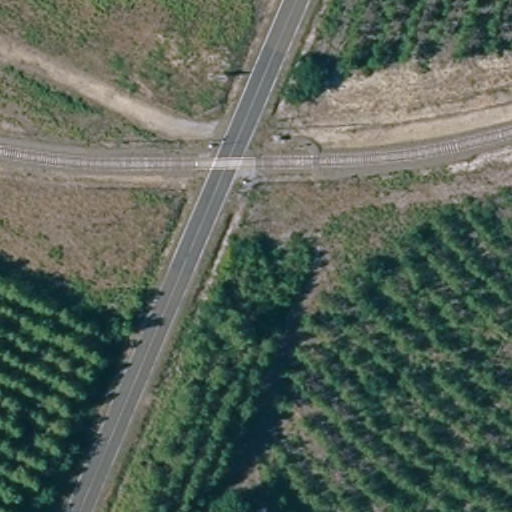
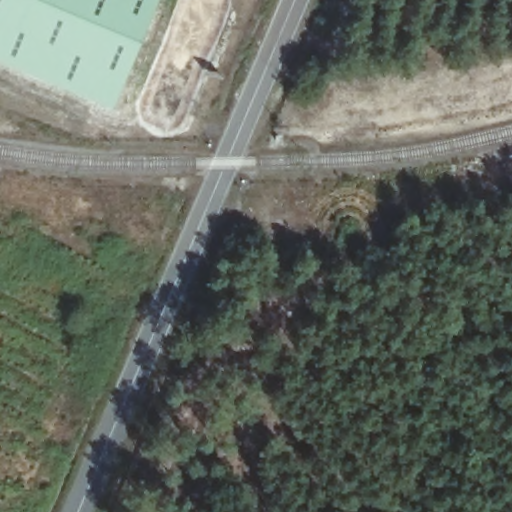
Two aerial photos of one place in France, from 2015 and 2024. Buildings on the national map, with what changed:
new [(115,105),(5,60),(0,58),(0,0),(158,0),(115,105)]

